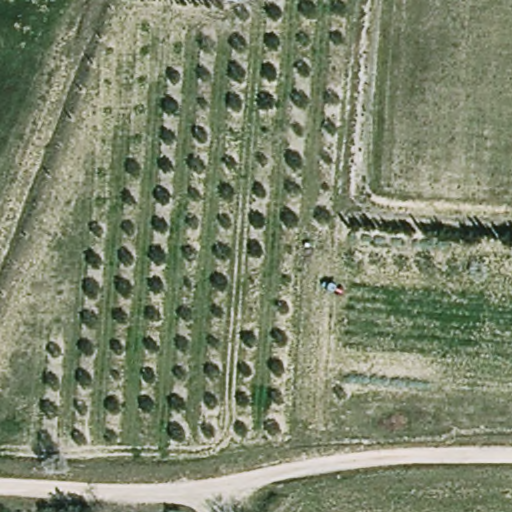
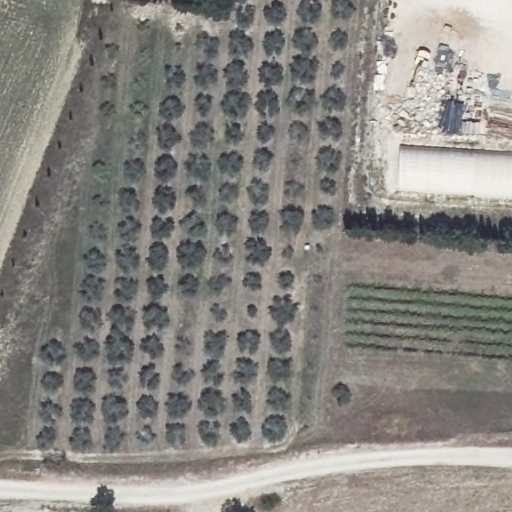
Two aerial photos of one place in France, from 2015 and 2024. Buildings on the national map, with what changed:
new [(401,146),(512,153),(512,197),(398,190),(401,146)]

